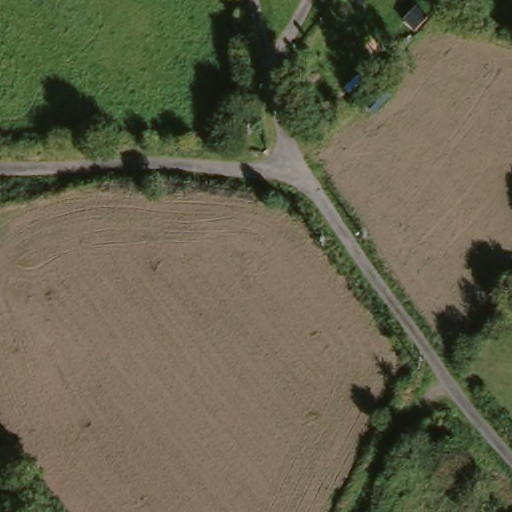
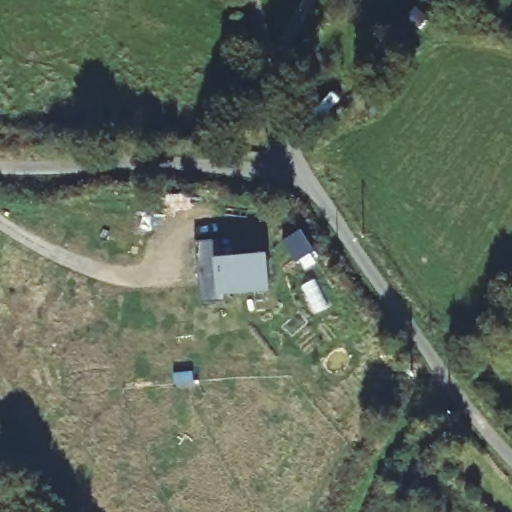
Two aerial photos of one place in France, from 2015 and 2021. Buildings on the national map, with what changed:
new [(219,238),(220,258),(265,254),(268,289),(224,292),(224,301),(204,302),(202,275),(197,276),(194,240),(219,238)]

